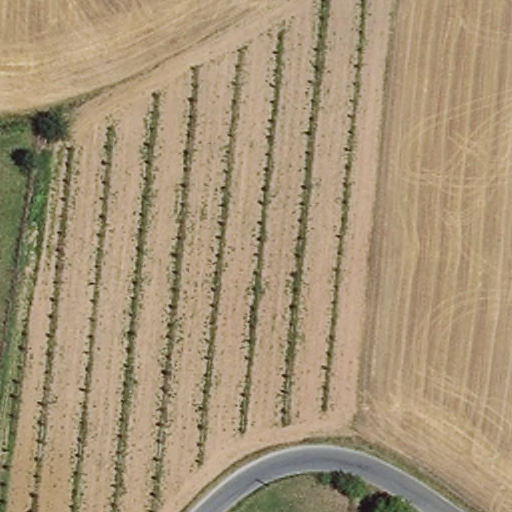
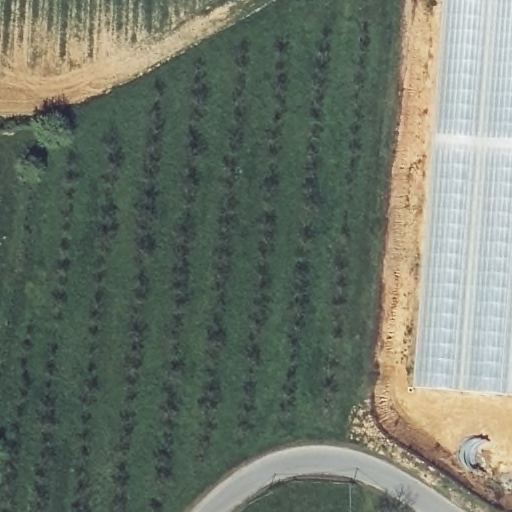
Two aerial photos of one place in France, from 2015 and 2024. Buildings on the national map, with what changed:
new [(415,328),(426,232),(430,154),(436,98),(443,0),(512,0),(512,395),(472,392),(411,386),(415,328)]

